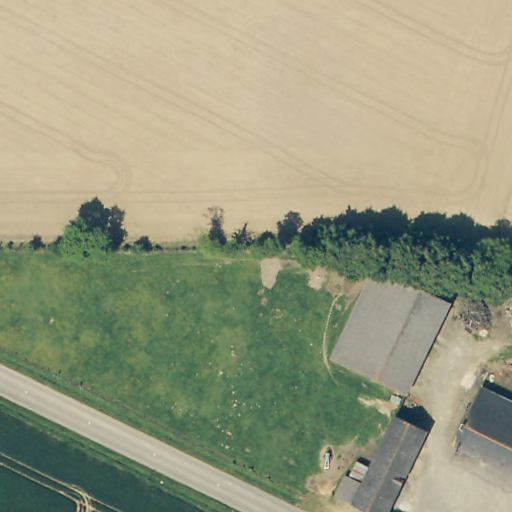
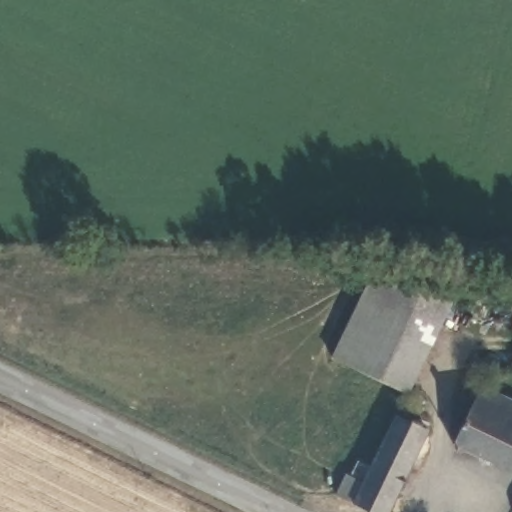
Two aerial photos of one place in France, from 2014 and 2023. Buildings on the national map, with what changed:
unchanged [(445,307),(401,392),(328,354),(372,269),(445,307)]
unchanged [(512,406),(512,476),(454,447),(482,391),(512,406)]
unchanged [(423,432),(381,512),(364,512),(329,494),(340,473),(357,483),(392,416),(423,432)]

